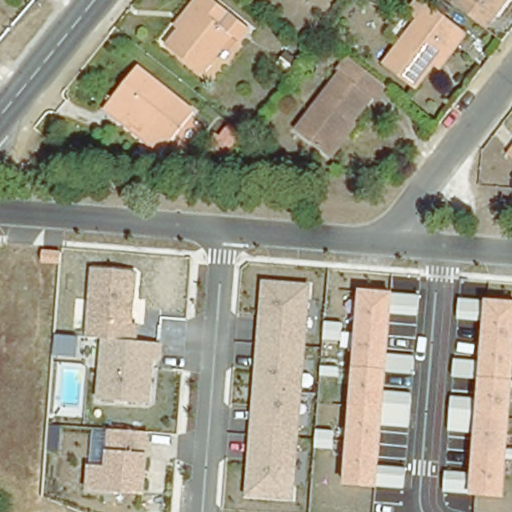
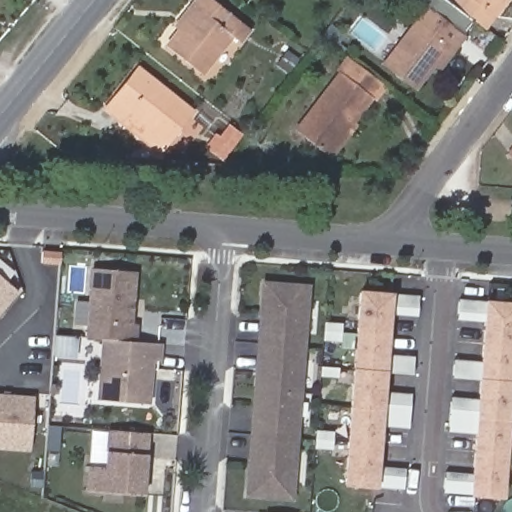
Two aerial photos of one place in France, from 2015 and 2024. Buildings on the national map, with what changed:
unchanged [(239,40),(231,34),(201,73),(168,46),(181,31),(176,28),(195,3),(198,0),(214,0),(248,28),(239,40)]
unchanged [(433,58),(414,83),(384,60),(430,0),(466,27),(458,38),(439,63),(433,58)]
unchanged [(456,0),(500,0),(483,21),(456,0)]
unchanged [(384,84),(328,155),(296,130),(338,78),(334,75),(349,57),(384,84)]
unchanged [(116,113),(104,103),(133,65),(188,108),(165,136),(158,145),(116,113)]
unchanged [(512,158),(507,154),(512,148),(512,158)]
unchanged [(137,273),(134,324),(139,324),(138,343),(163,344),(162,362),(153,362),(150,404),(97,400),(102,340),(87,339),(92,269),(137,273)]
new [(19,292),(0,314),(0,275),(19,292)]
unchanged [(262,280),(312,284),(296,501),(246,498),(262,280)]
unchanged [(392,293),(420,295),(418,317),(391,314),(388,355),(415,357),(414,374),(387,372),(385,392),(412,394),(409,428),(383,427),(380,466),(406,468),(404,489),(378,488),(344,486),(359,289),(392,293)]
unchanged [(470,496),(444,493),(445,472),(472,474),(474,434),(448,432),(452,396),(477,399),(478,380),(453,378),(455,359),(480,361),(482,322),(457,320),(459,299),(485,299),(512,301),(512,406),(504,499),(470,496)]
new [(34,395),(30,451),(0,449),(0,393),(34,395)]
unchanged [(107,468),(109,450),(110,431),(149,434),(148,454),(145,496),(87,492),(89,467),(107,468)]

